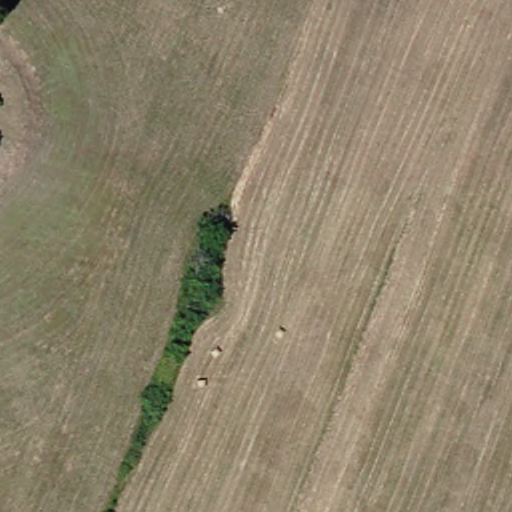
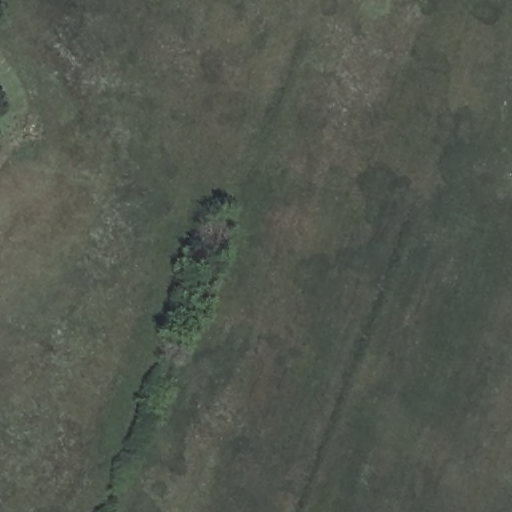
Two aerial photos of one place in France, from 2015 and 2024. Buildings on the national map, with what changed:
[]

